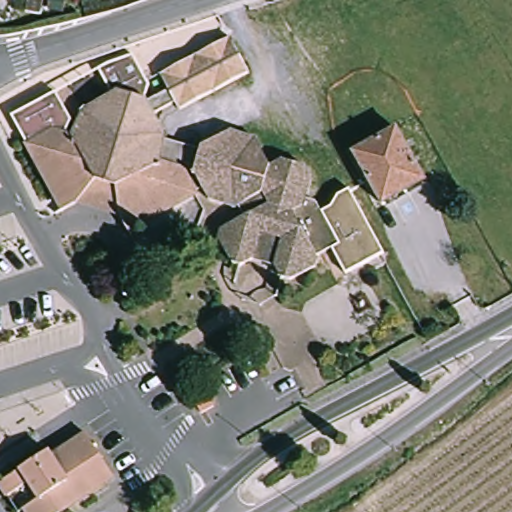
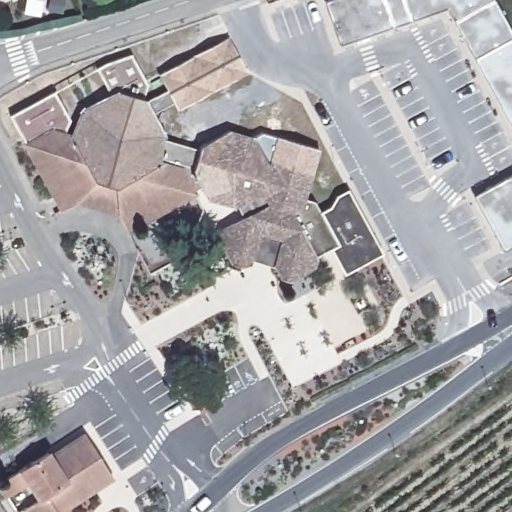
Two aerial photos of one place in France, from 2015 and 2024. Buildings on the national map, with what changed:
new [(443,10),(336,48),(321,4),(332,0),(491,0),(512,38),(512,132),(443,10)]
unchanged [(69,123),(64,137),(72,139),(81,113),(110,97),(95,70),(105,65),(129,57),(145,86),(141,100),(143,104),(164,91),(156,76),(169,69),(225,38),(244,73),(244,74),(188,104),(176,111),(171,104),(149,116),(160,135),(160,141),(198,150),(198,148),(199,189),(193,192),(194,195),(126,233),(118,218),(75,204),(61,212),(9,118),(53,94),(69,123)]
demolished [(397,184),(402,194),(374,208),(347,153),(395,129),(418,174),(397,184)]
unchanged [(229,130),(251,139),(267,167),(279,160),(301,166),(308,179),(302,199),(313,201),(319,212),(332,248),(316,256),(318,258),(316,265),(291,280),(283,278),(272,259),(258,255),(239,266),(231,264),(218,239),(219,231),(243,218),(236,207),(233,208),(206,200),(199,189),(198,148),(229,130)]
new [(512,174),(512,247),(504,252),(479,209),(473,197),(484,190),(512,174)]
unchanged [(336,194),(348,188),(384,252),(346,273),(332,248),(319,212),(328,207),(336,194)]
unchanged [(207,392),(215,404),(201,413),(193,400),(207,392)]
unchanged [(54,504),(59,512),(27,512),(23,507),(38,498),(25,479),(3,494),(0,490),(0,478),(45,449),(48,454),(83,431),(104,466),(110,474),(96,484),(88,489),(85,484),(54,504)]

